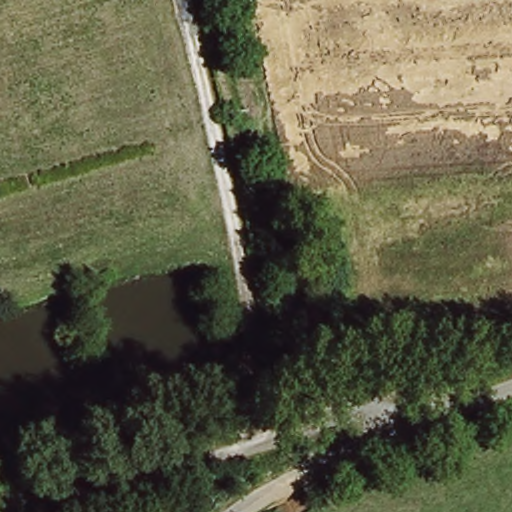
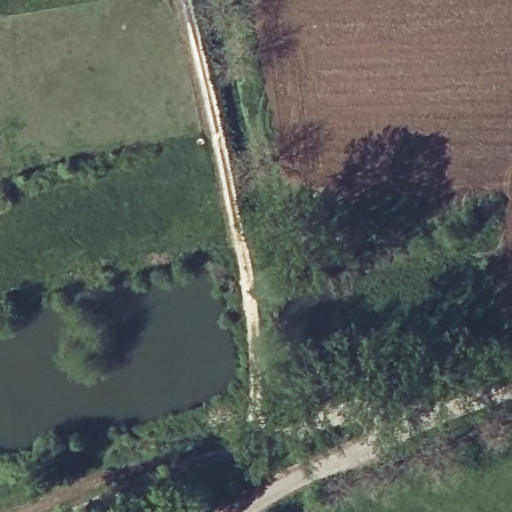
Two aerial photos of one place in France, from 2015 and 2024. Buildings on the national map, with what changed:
[]

